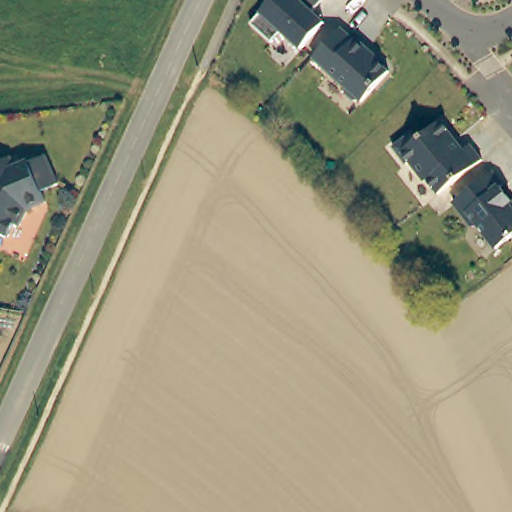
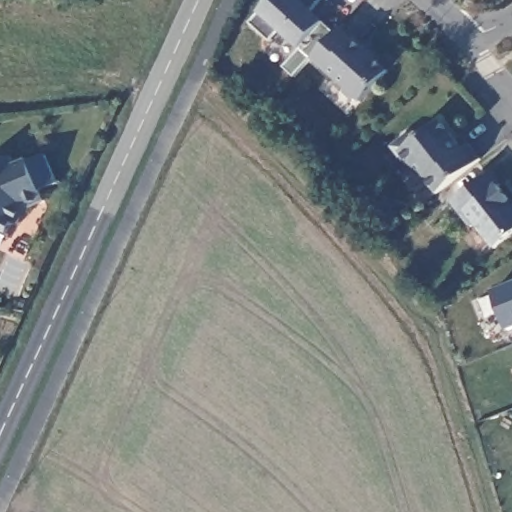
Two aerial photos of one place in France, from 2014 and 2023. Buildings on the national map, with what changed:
unchanged [(299,50),(279,33),(269,44),(248,24),(271,0),(322,0),(310,13),(322,24),(318,29),(299,50)]
unchanged [(320,49),(338,29),(351,40),(353,39),(367,51),(365,54),(386,73),(359,103),(357,101),(351,101),(342,93),(342,88),(310,59),(320,49)]
unchanged [(436,194),(421,175),(419,177),(407,162),(404,164),(391,147),(408,134),(414,141),(440,121),(462,150),(468,145),(480,161),(436,194)]
unchanged [(36,190),(40,201),(22,209),(13,225),(9,223),(2,236),(0,235),(0,159),(6,156),(10,165),(23,159),(24,162),(41,155),(53,184),(36,190)]
unchanged [(498,188),(509,203),(506,205),(512,213),(512,236),(493,250),(476,228),(469,227),(450,203),(489,173),(500,187),(498,188)]
new [(495,290),(512,284),(512,329),(507,330),(495,290)]

